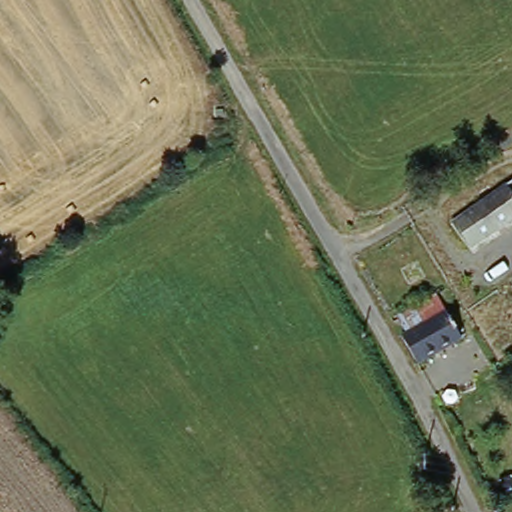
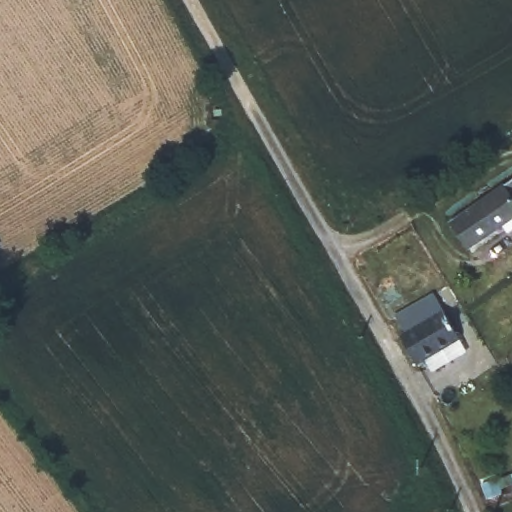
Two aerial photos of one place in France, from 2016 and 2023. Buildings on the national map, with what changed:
unchanged [(461,234),(512,198),(512,238),(480,262),(461,234)]
unchanged [(415,333),(455,313),(463,330),(477,357),(430,382),(415,356),(423,351),(415,333)]

